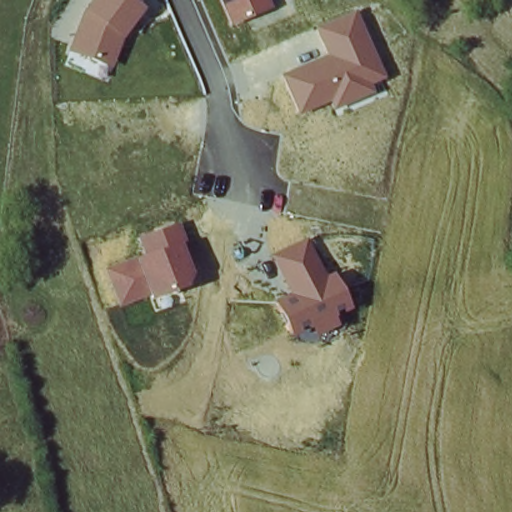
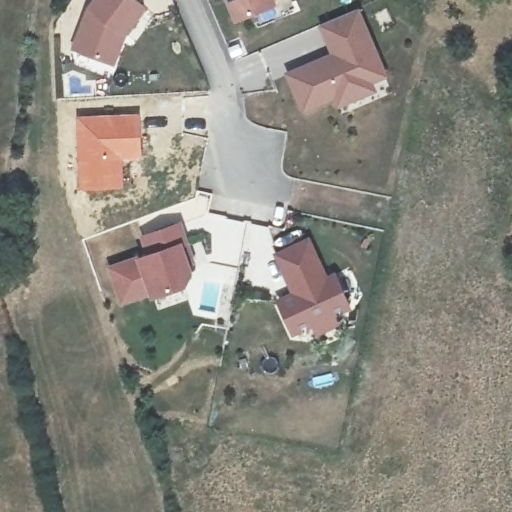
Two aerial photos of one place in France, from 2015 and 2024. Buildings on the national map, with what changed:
unchanged [(89,0),(140,0),(141,1),(120,27),(115,22),(103,55),(92,51),(72,44),(77,29),(87,2),(89,0)]
unchanged [(227,0),(263,0),(233,13),(227,0)]
unchanged [(387,77),(374,82),(377,91),(335,109),(332,101),(302,115),(285,74),(330,55),(318,26),(360,10),(387,77)]
new [(140,112),(142,159),(123,160),(124,187),(79,189),(75,115),(140,112)]
unchanged [(195,274),(185,287),(152,297),(120,306),(107,267),(147,254),(142,236),(180,222),(195,274)]
unchanged [(327,275),(335,271),(354,312),(343,316),(347,322),(315,336),(312,329),(294,337),(278,300),(290,294),(272,255),(312,239),(327,275)]

